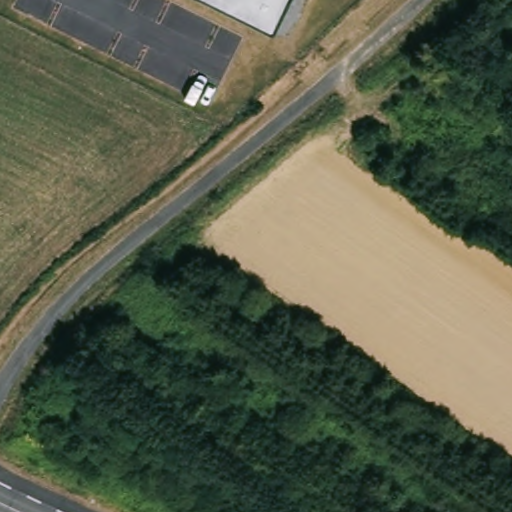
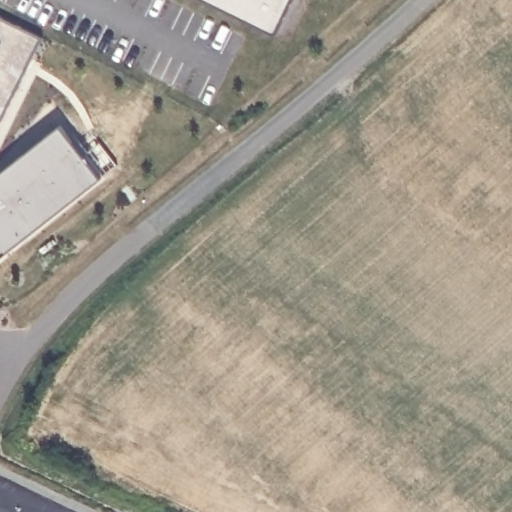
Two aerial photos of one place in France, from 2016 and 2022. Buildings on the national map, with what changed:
unchanged [(208,0),(291,0),(275,33),(208,0)]
new [(102,178),(0,258),(0,174),(61,125),(102,178)]

